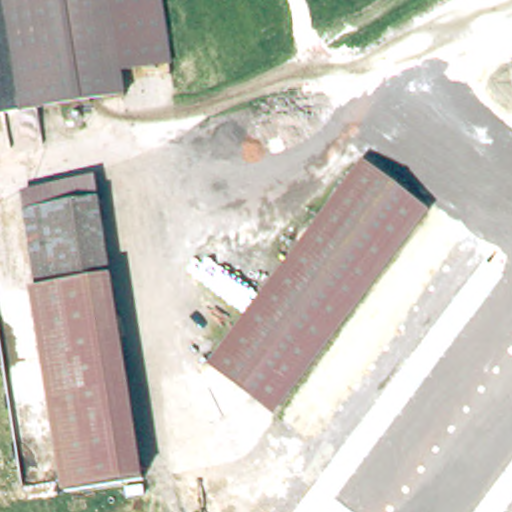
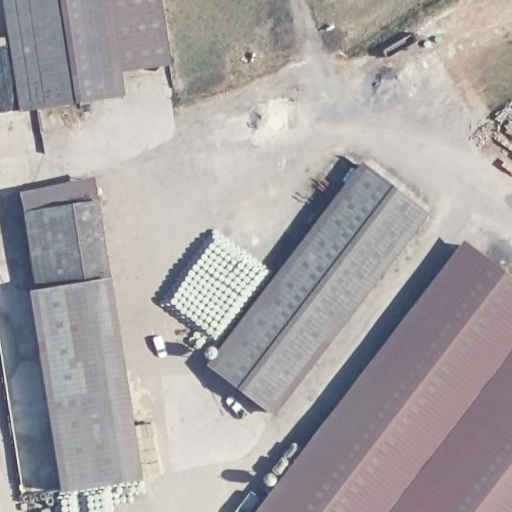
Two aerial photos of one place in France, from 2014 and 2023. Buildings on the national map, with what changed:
unchanged [(171,62),(120,70),(124,96),(19,111),(3,0),(162,0),(171,62)]
unchanged [(361,163),(432,215),(274,412),(209,362),(361,163)]
unchanged [(21,193),(97,181),(100,203),(24,214),(21,193)]
unchanged [(100,203),(112,279),(36,290),(24,214),(100,203)]
new [(512,276),(512,353),(389,512),(256,512),(464,240),(512,276)]
unchanged [(112,279),(144,491),(65,503),(36,290),(112,279)]
new [(512,512),(389,512),(512,353),(512,512)]

